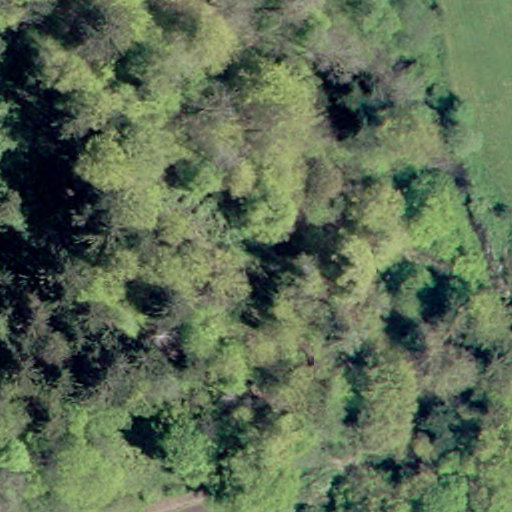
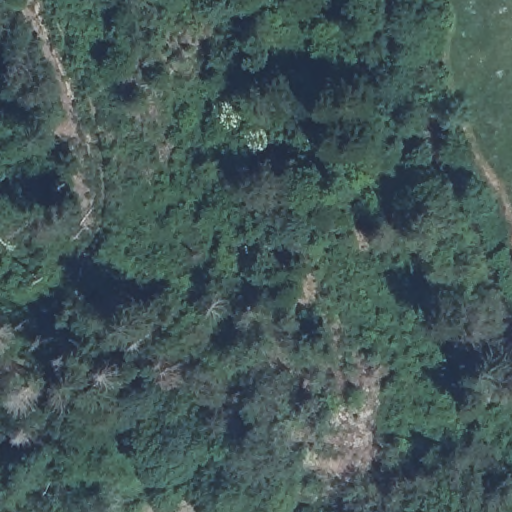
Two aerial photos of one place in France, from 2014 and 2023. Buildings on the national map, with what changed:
[]

